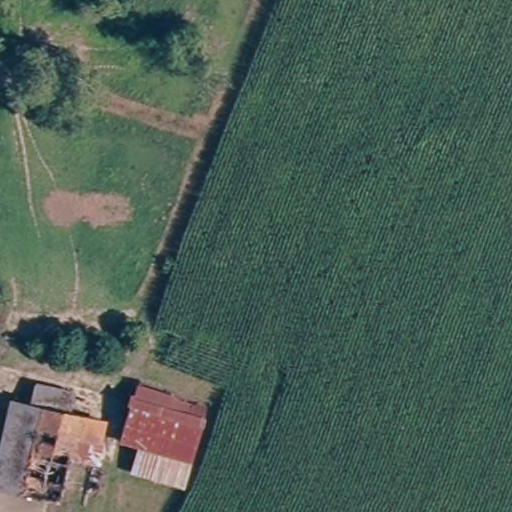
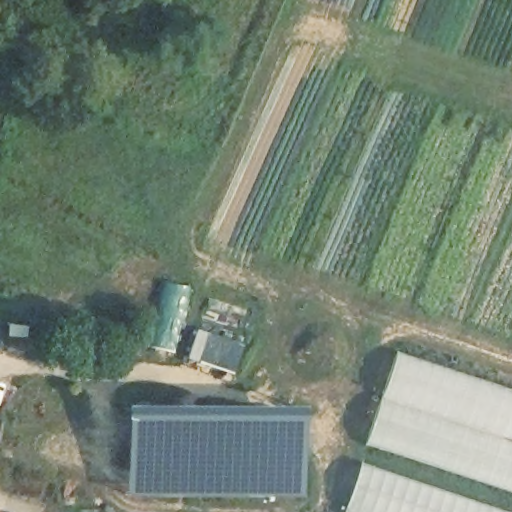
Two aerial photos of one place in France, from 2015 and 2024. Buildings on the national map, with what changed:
new [(203,331),(244,344),(234,374),(191,360),(203,331)]
new [(394,354),(512,393),(512,496),(363,446),(394,354)]
demolished [(182,488),(126,474),(135,446),(116,437),(118,424),(125,390),(135,392),(136,381),(203,402),(182,488)]
demolished [(71,435),(56,500),(0,486),(0,446),(11,399),(30,404),(43,407),(39,426),(71,435)]
new [(136,411),(189,407),(279,408),(279,411),(301,410),(301,497),(210,499),(125,496),(123,411),(136,411)]
new [(344,512),(359,463),(506,512),(344,512)]

